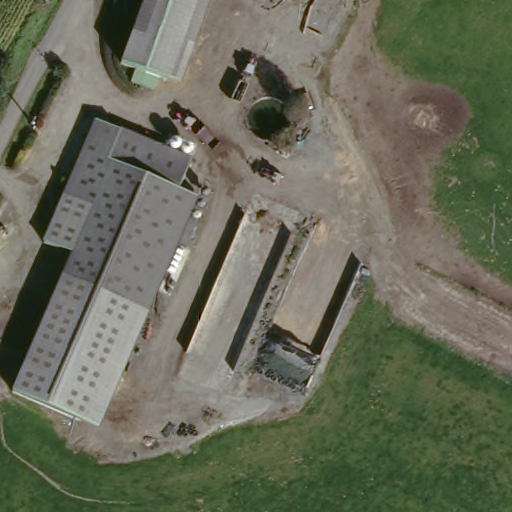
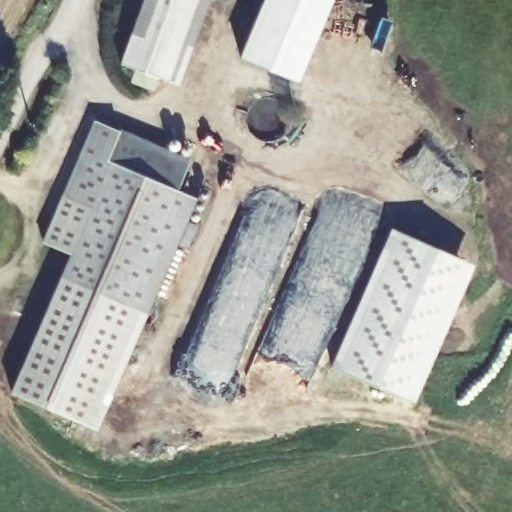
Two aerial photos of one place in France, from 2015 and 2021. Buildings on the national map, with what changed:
unchanged [(172,80),(125,65),(146,0),(198,0),(172,80)]
new [(269,0),(334,0),(298,84),(244,61),(269,0)]
unchanged [(97,206),(77,252),(49,239),(102,118),(196,159),(184,188),(117,159),(97,206)]
unchanged [(202,196),(102,427),(17,390),(77,252),(97,206),(117,159),(184,188),(202,196)]
new [(400,232),(461,260),(400,397),(338,370),(400,232)]

